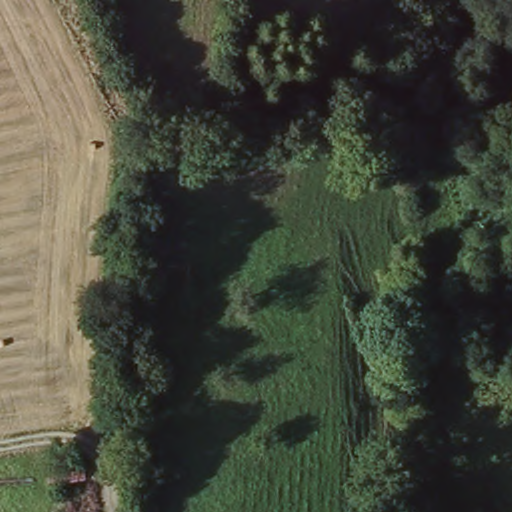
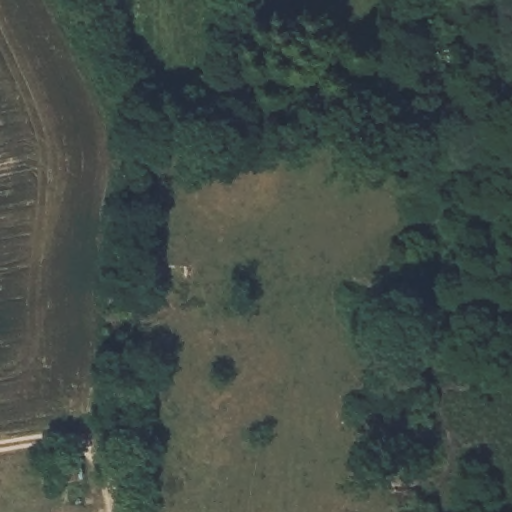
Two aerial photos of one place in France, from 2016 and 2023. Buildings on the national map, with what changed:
unchanged [(46,461),(83,456),(87,481),(49,483),(46,461)]

